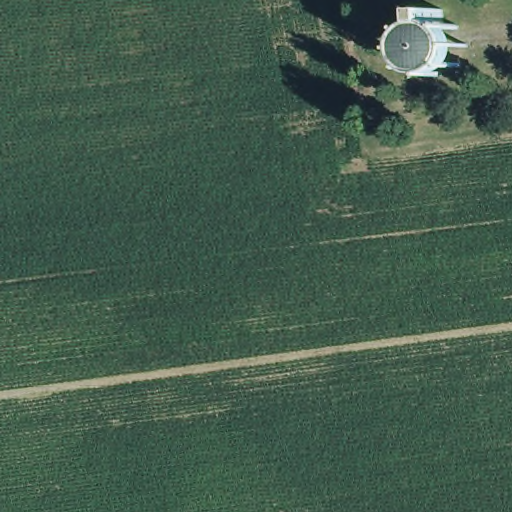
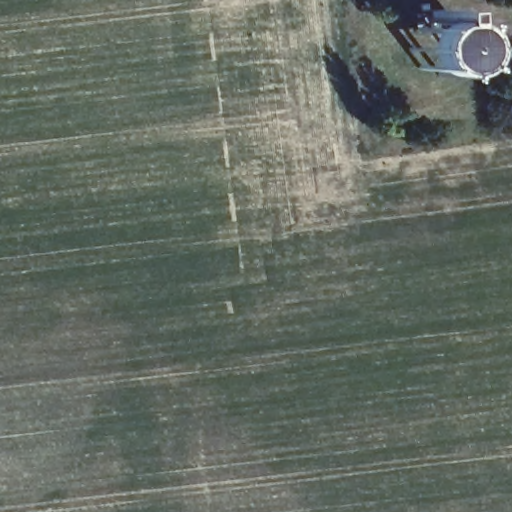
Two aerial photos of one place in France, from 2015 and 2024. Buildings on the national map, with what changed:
unchanged [(430,8),(446,6),(447,18),(447,21),(448,24),(432,25),(432,20),(430,8)]

